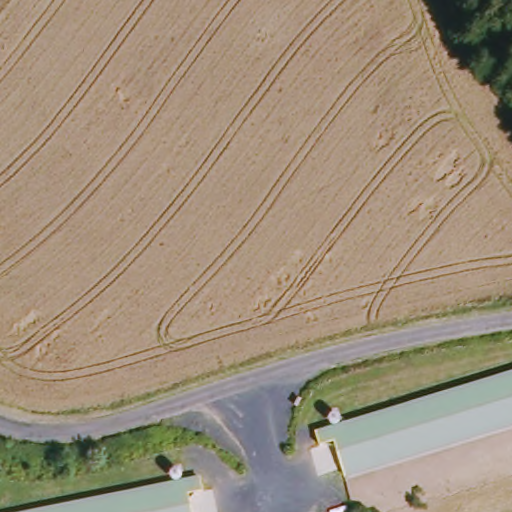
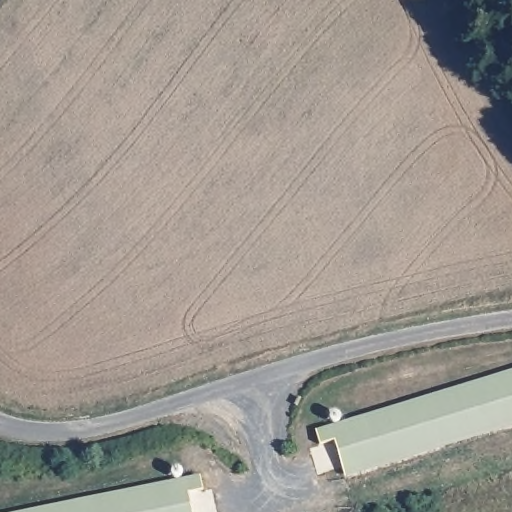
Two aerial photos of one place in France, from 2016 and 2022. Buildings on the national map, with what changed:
unchanged [(337,470),(329,437),(313,440),(311,429),(512,375),(512,425),(337,470)]
unchanged [(186,503),(188,512),(54,512),(200,489),(201,500),(186,503)]

